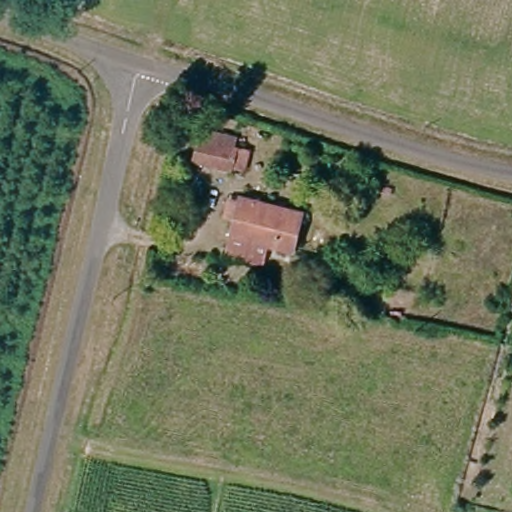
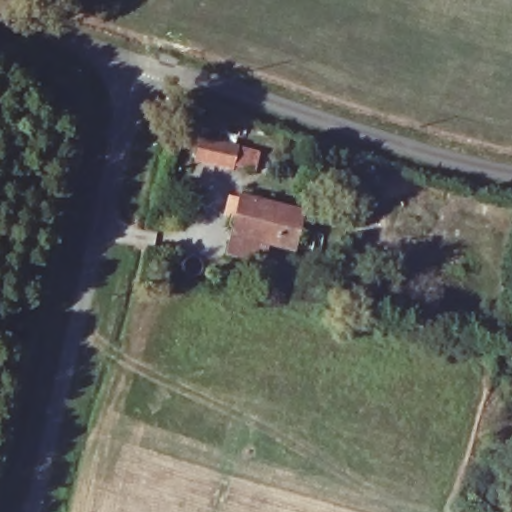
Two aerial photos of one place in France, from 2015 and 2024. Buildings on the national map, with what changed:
unchanged [(250,141),(247,161),(192,152),(195,132),(250,141)]
unchanged [(294,254),(267,248),(263,267),(227,260),(234,224),(222,222),(225,202),(238,205),(301,216),(294,254)]

